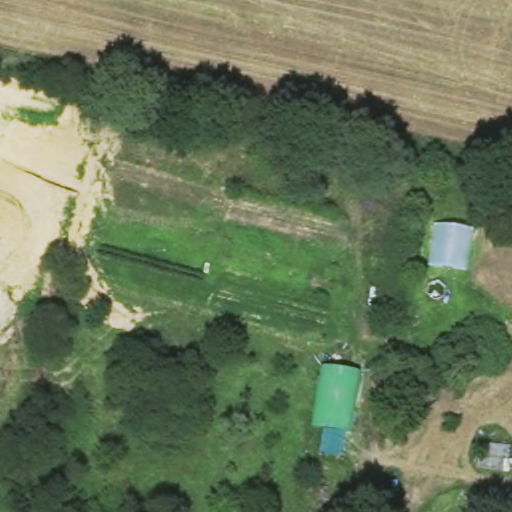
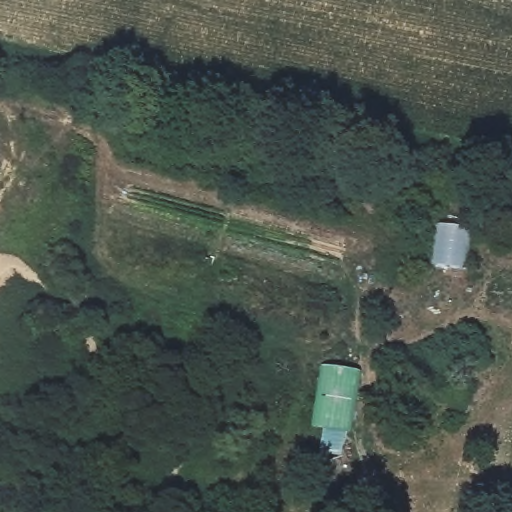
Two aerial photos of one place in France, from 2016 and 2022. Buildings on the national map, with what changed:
unchanged [(472,229),(467,270),(429,264),(433,223),(472,229)]
unchanged [(327,429),(310,426),(321,366),(358,371),(350,433),(327,429)]

